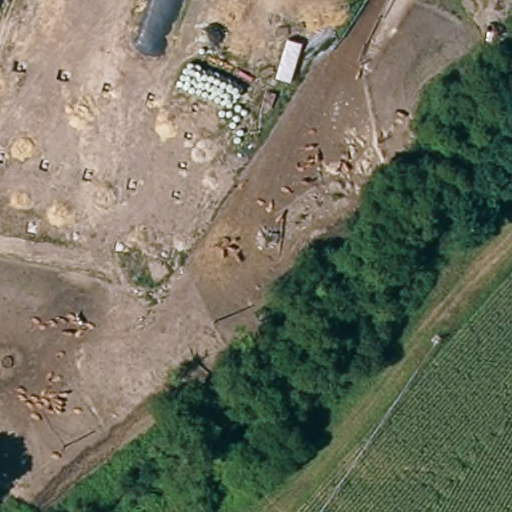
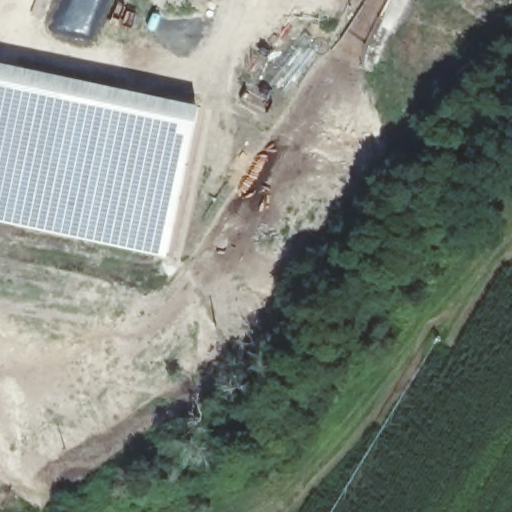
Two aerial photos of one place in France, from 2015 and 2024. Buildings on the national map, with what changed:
new [(165,255),(0,220),(0,63),(198,105),(165,255)]

